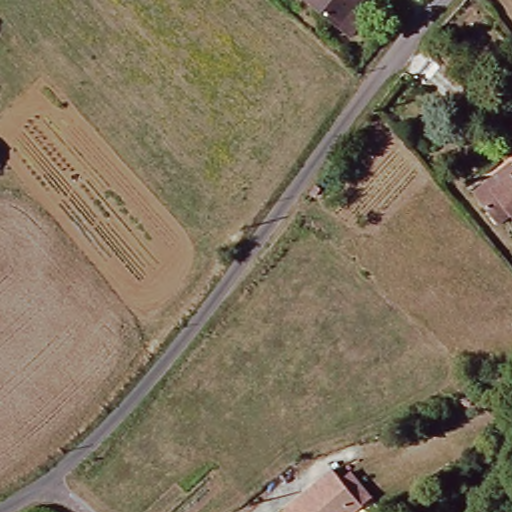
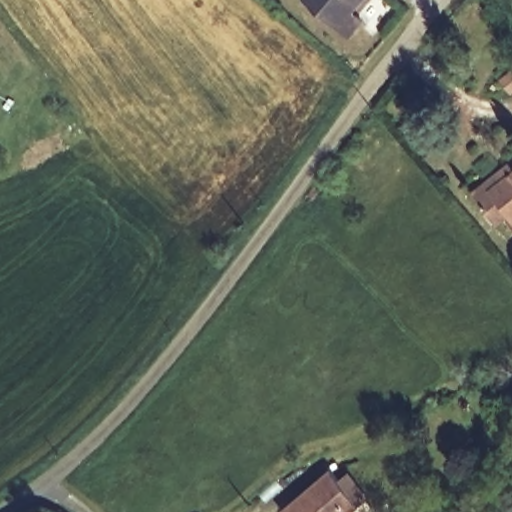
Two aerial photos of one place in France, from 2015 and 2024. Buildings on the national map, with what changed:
unchanged [(343,25),(311,0),(366,0),(343,25)]
unchanged [(504,75),(512,69),(512,84),(504,75)]
unchanged [(499,227),(474,192),(488,181),(512,164),(512,218),(499,227)]
unchanged [(341,478),(351,469),(375,496),(364,506),(357,512),(285,512),(334,470),(341,478)]

